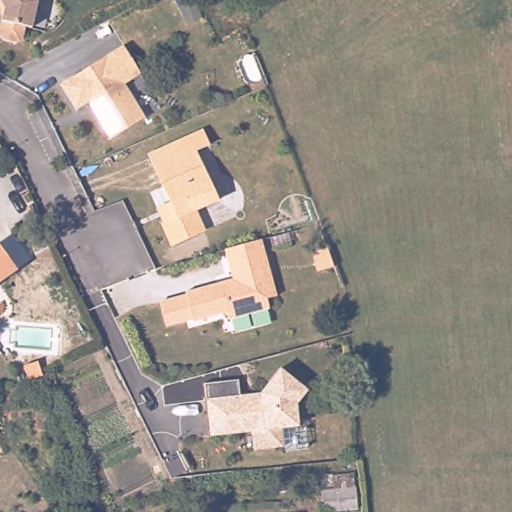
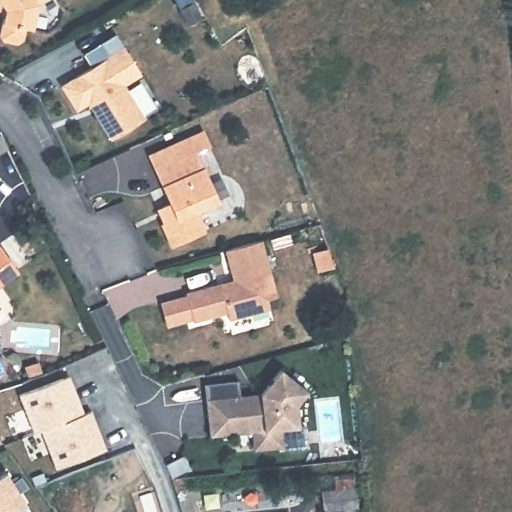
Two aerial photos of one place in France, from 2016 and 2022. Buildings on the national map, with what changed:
unchanged [(38,2),(33,28),(26,26),(24,39),(18,43),(4,40),(0,34),(4,16),(0,10),(0,0),(42,0),(38,2)]
unchanged [(124,45),(141,72),(124,83),(145,116),(112,138),(97,115),(98,110),(92,99),(77,109),(61,85),(124,45)]
unchanged [(164,207),(172,203),(156,168),(150,155),(179,142),(204,131),(211,145),(197,152),(219,201),(197,211),(206,231),(173,245),(163,224),(166,223),(164,219),(159,209),(164,207)]
unchanged [(162,302),(187,295),(187,292),(224,283),(234,280),(226,250),(263,240),(278,297),(268,299),(271,309),(230,320),(228,312),(194,321),(194,319),(168,326),(162,302)]
unchanged [(0,282),(0,243),(18,269),(0,282)]
unchanged [(315,254),(329,248),(336,267),(322,272),(315,254)]
unchanged [(26,363),(38,359),(44,374),(31,379),(26,363)]
unchanged [(210,415),(209,400),(234,397),(243,396),(263,394),(283,370),(310,392),(299,405),(301,428),(284,430),(286,448),(256,451),(254,433),(237,434),(213,437),(210,415)]
new [(69,374),(84,412),(91,409),(106,449),(55,468),(41,430),(33,434),(18,394),(69,374)]
unchanged [(16,512),(0,512),(0,476),(6,472),(26,505),(16,512)]
unchanged [(360,480),(362,502),(329,504),(327,482),(360,480)]

